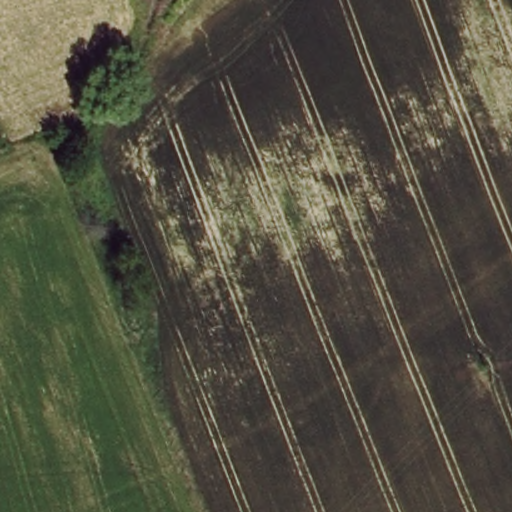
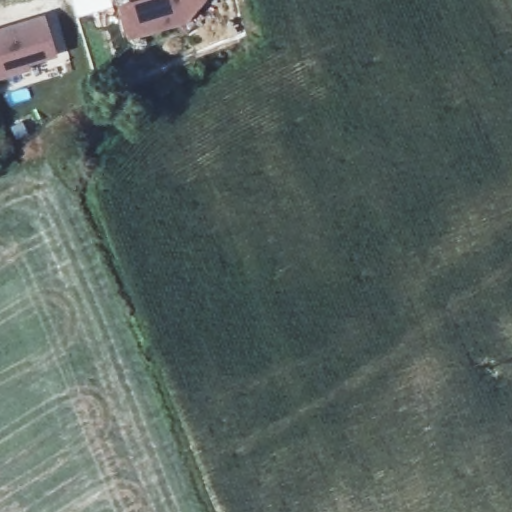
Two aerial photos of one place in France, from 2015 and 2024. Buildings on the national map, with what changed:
new [(132,2),(131,0),(205,0),(186,22),(128,39),(117,6),(132,2)]
new [(45,15),(58,57),(28,66),(30,71),(0,80),(0,29),(45,15)]

